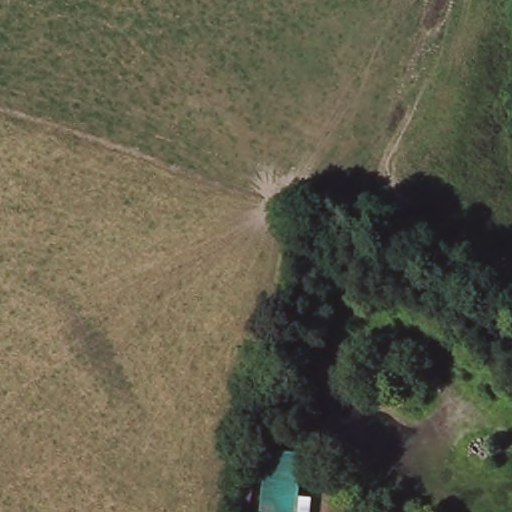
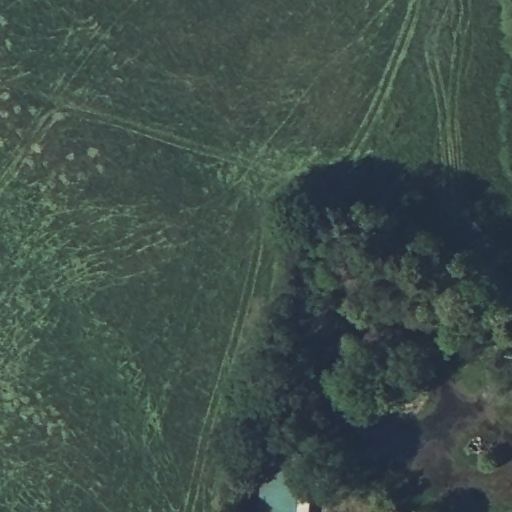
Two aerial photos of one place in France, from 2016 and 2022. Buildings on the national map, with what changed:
unchanged [(295,512),(256,512),(263,449),(302,452),(295,512)]

